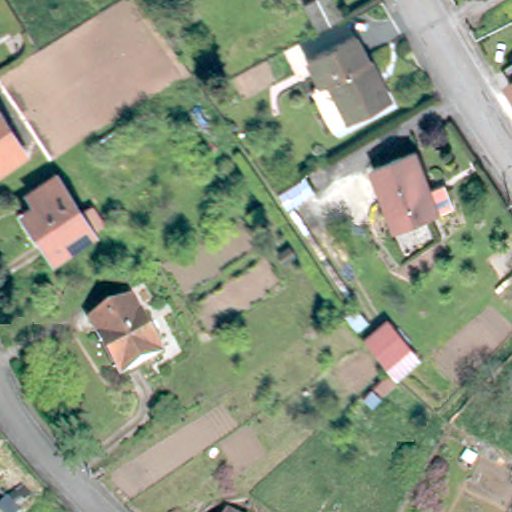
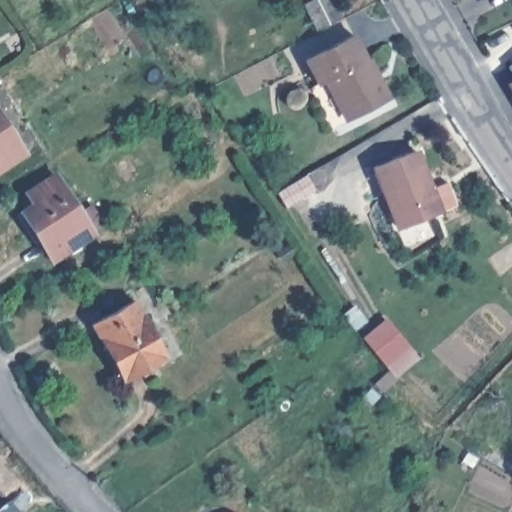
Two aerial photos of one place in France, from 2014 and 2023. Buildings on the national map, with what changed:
unchanged [(300,19),(328,2),(344,27),(316,44),(300,19)]
unchanged [(189,26),(174,34),(168,22),(182,15),(189,26)]
unchanged [(317,72),(314,74),(303,57),(349,30),(369,64),(374,61),(390,89),(386,91),(350,114),(344,117),(317,72)]
unchanged [(22,153),(0,168),(0,119),(22,153)]
unchanged [(439,211),(403,230),(384,196),(371,171),(411,150),(430,187),(432,186),(436,193),(444,209),(439,211)]
unchanged [(59,253),(29,205),(41,198),(33,186),(61,168),(100,225),(59,253)]
unchanged [(285,212),(275,196),(307,179),(314,197),(285,212)]
unchanged [(137,302),(166,353),(124,377),(94,325),(137,302)]
unchanged [(408,340),(387,359),(367,335),(387,316),(408,340)]

